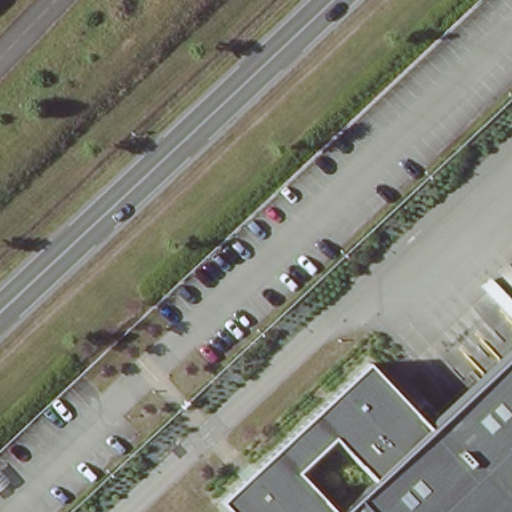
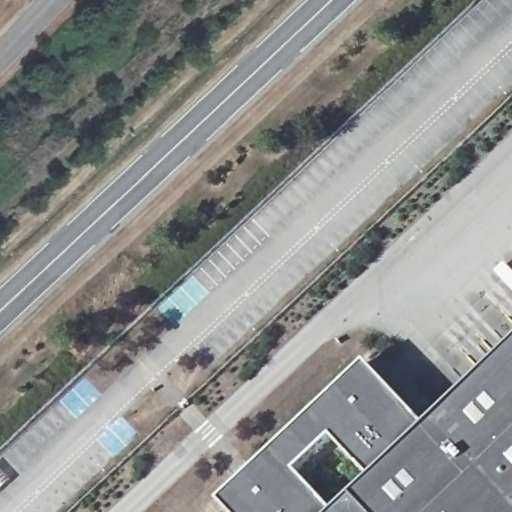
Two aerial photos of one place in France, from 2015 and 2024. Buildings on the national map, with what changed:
unchanged [(368,362),(430,428),(512,351),(512,512),(230,512),(220,501),(368,362)]

